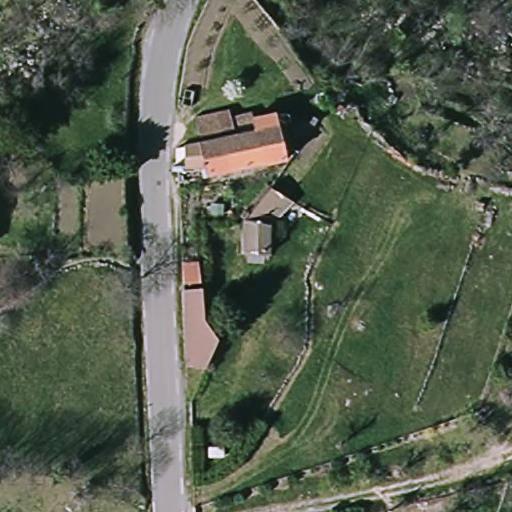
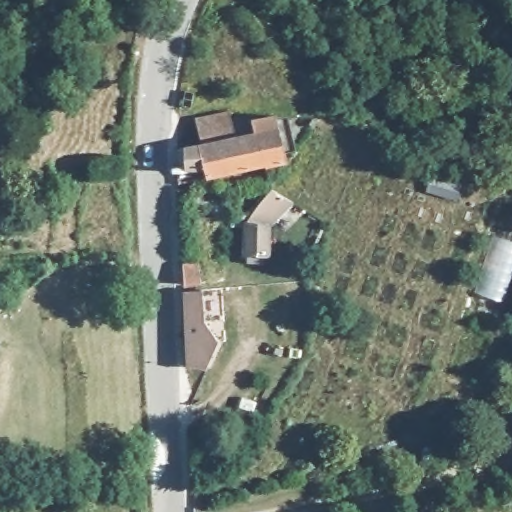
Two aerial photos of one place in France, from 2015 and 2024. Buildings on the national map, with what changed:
unchanged [(181,172),(180,150),(202,146),(196,122),(228,115),(230,127),(262,119),(270,117),(280,167),(227,176),(207,181),(205,170),(181,172)]
unchanged [(244,223),(269,188),(293,204),(271,225),(272,255),(243,256),(244,223)]
new [(512,240),(512,271),(502,302),(475,293),(494,235),(512,240)]
unchanged [(179,283),(179,265),(198,265),(200,282),(179,283)]
unchanged [(185,369),(180,294),(201,293),(203,319),(218,339),(204,368),(185,369)]

